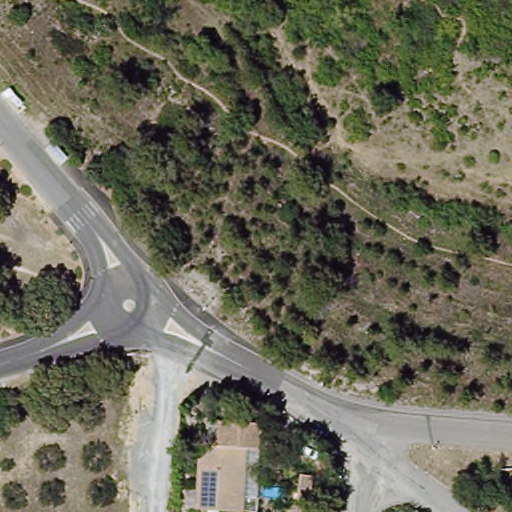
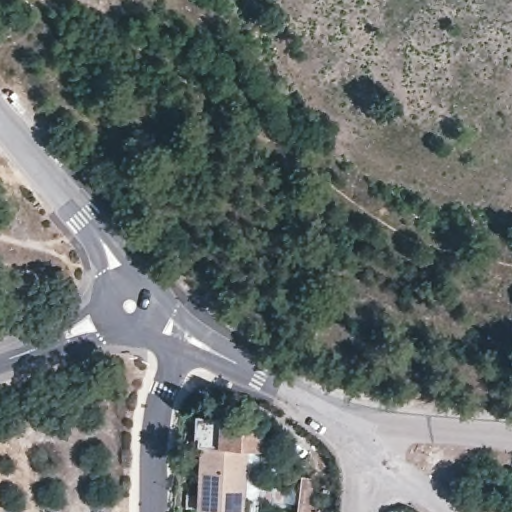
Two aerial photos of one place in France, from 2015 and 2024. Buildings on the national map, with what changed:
unchanged [(220,452),(221,425),(263,429),(261,509),(243,508),(243,512),(201,512),(205,450),(220,452)]

